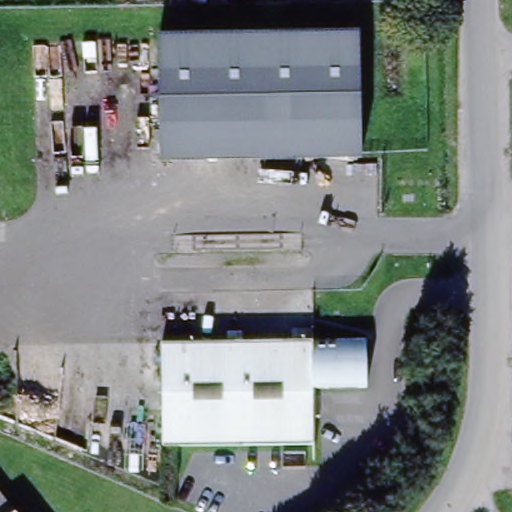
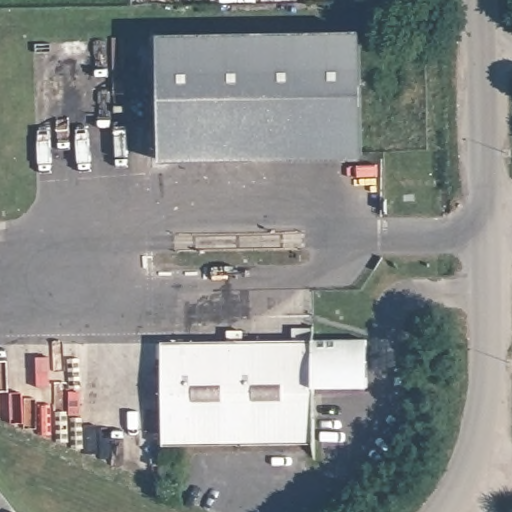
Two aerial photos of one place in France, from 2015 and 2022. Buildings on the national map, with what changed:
unchanged [(362,34),(363,149),(160,152),(158,38),(362,34)]
unchanged [(367,340),(369,386),(317,387),(317,443),(163,444),(163,344),(367,340)]
unchanged [(16,512),(0,512),(0,487),(18,510),(16,512)]
unchanged [(18,510),(20,512),(16,512),(18,510)]

